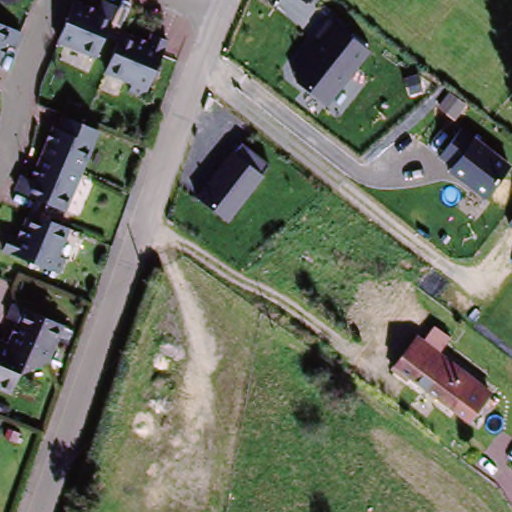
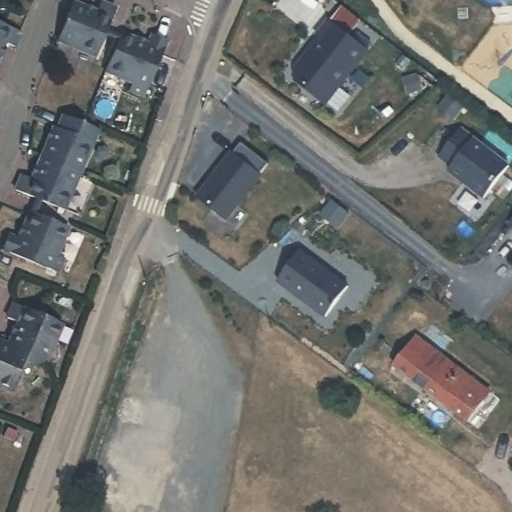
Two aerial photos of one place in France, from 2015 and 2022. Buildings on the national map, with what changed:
unchanged [(71,0),(76,0),(93,8),(99,11),(104,1),(114,6),(117,8),(109,26),(95,55),(55,35),(71,0)]
unchanged [(295,81),(293,68),(315,40),(312,37),(325,20),(369,52),(326,107),(295,81)]
unchanged [(15,50),(5,45),(0,57),(0,25),(22,36),(15,50)]
unchanged [(162,59),(143,98),(129,91),(132,84),(107,71),(124,36),(125,34),(148,46),(150,47),(155,37),(169,44),(162,59)]
unchanged [(55,127),(59,129),(65,116),(99,132),(79,173),(42,156),(55,127)]
unchanged [(445,174),(448,171),(437,163),(463,127),(512,164),(482,203),(445,174)]
unchanged [(237,140),(269,163),(228,221),(195,195),(237,140)]
unchanged [(34,202),(14,192),(20,178),(30,183),(42,156),(79,173),(60,214),(34,202)]
unchanged [(57,257),(65,261),(57,275),(5,248),(10,237),(12,234),(21,239),(34,213),(70,231),(57,257)]
unchanged [(512,225),(512,229),(510,228),(512,225)]
new [(350,290),(327,319),(280,282),(302,252),(350,290)]
unchanged [(10,342),(11,340),(20,319),(10,315),(15,303),(16,301),(63,321),(47,359),(22,370),(14,389),(0,383),(0,340),(0,339),(10,342)]
unchanged [(395,364),(418,335),(476,382),(466,394),(431,363),(415,382),(395,364)]
unchanged [(431,363),(466,394),(450,414),(415,382),(431,363)]

